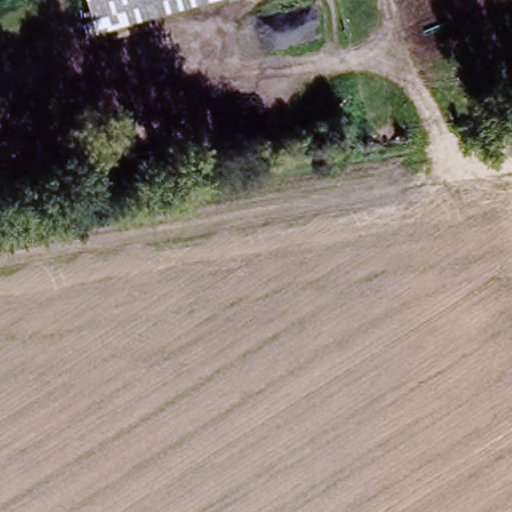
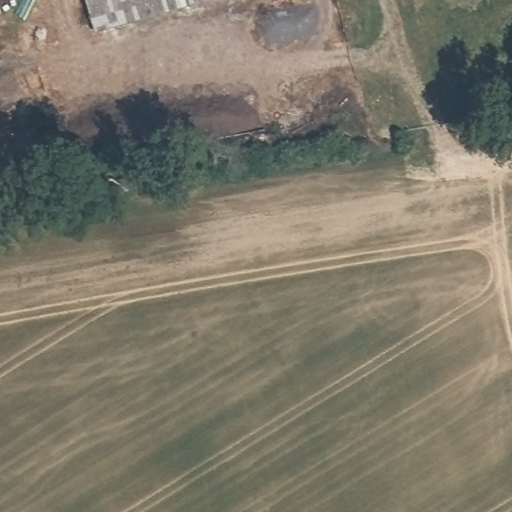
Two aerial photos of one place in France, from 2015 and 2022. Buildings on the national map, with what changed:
unchanged [(84,0),(220,0),(95,36),(84,0)]

